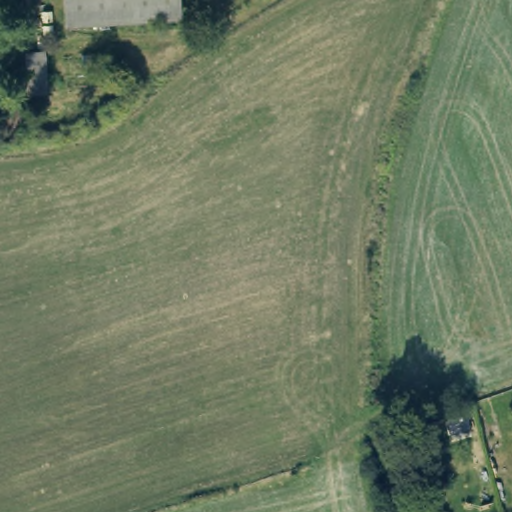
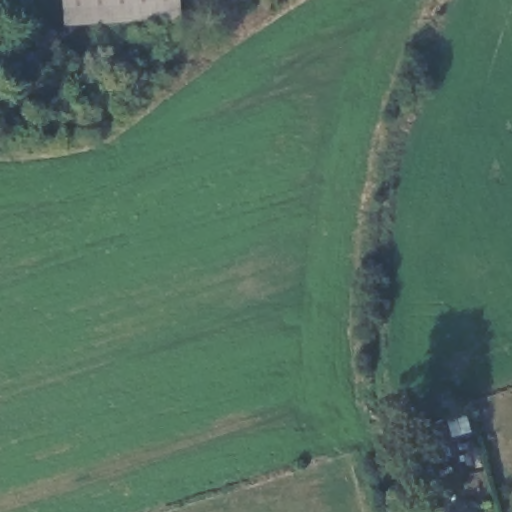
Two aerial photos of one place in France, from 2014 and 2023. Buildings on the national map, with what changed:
unchanged [(64,0),(177,0),(179,16),(66,25),(64,0)]
unchanged [(25,66),(41,65),(45,105),(27,106),(25,66)]

